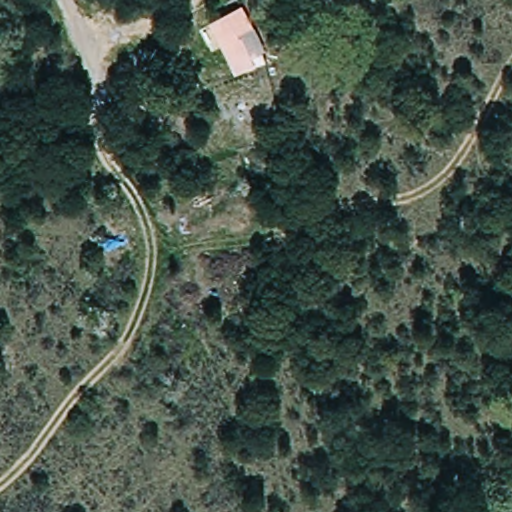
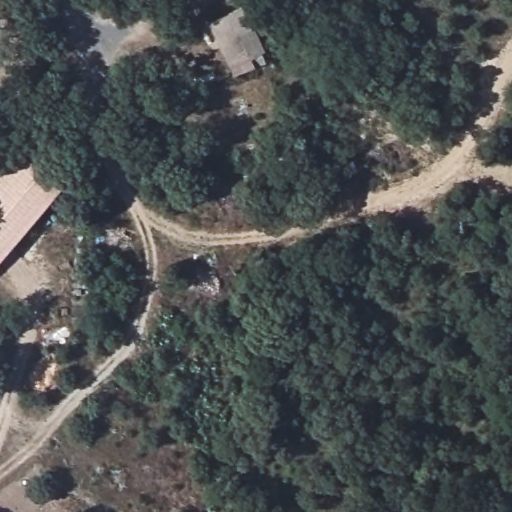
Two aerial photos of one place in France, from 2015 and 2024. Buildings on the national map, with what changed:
unchanged [(265,63),(253,68),(234,77),(221,46),(210,23),(241,5),(255,28),(265,51),(265,63)]
new [(20,147),(65,186),(0,262),(0,170),(20,147)]

